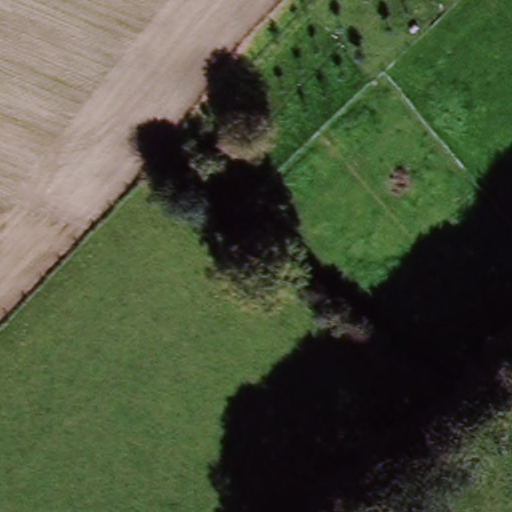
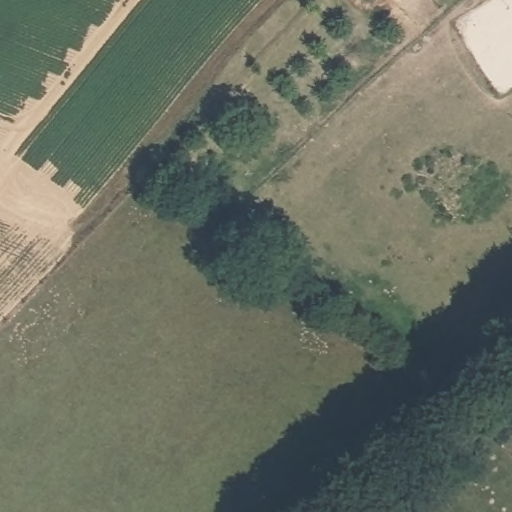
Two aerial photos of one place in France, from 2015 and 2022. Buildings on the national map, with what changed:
unchanged [(378,5),(373,0),(383,0),(378,5)]

